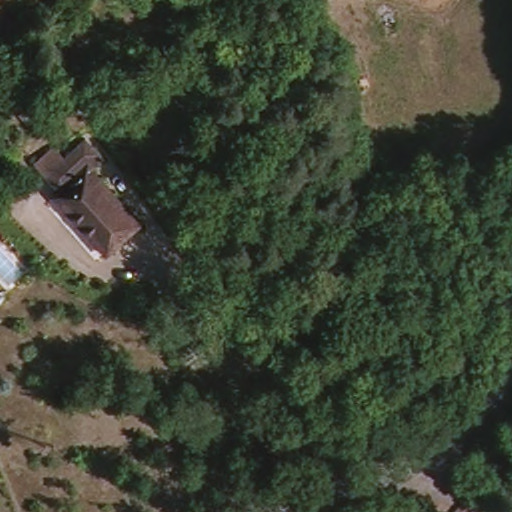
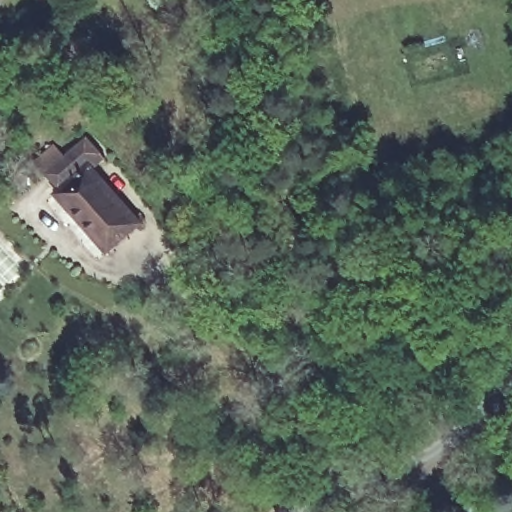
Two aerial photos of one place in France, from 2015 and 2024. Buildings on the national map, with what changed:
unchanged [(107,162),(97,171),(145,226),(111,257),(55,194),(60,192),(47,177),(36,163),(54,148),(65,159),(85,139),(107,162)]

